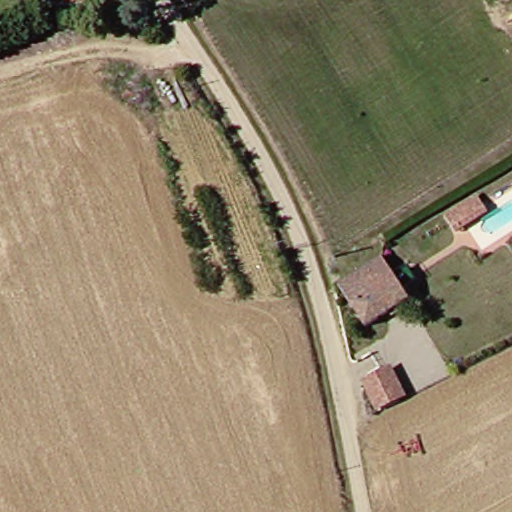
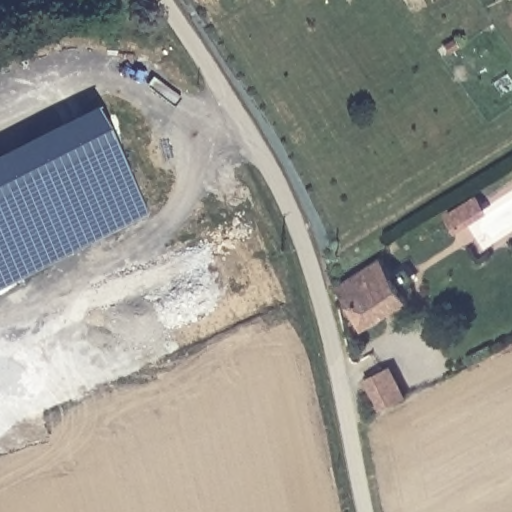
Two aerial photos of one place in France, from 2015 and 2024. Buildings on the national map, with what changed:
new [(150,216),(20,278),(0,236),(0,157),(100,110),(150,216)]
unchanged [(472,189),(479,201),(447,222),(439,210),(472,189)]
new [(0,288),(0,236),(20,278),(0,288)]
unchanged [(412,266),(419,278),(407,286),(415,298),(372,327),(344,285),(383,259),(387,256),(399,275),(412,266)]
unchanged [(385,363),(399,391),(376,404),(361,375),(385,363)]

